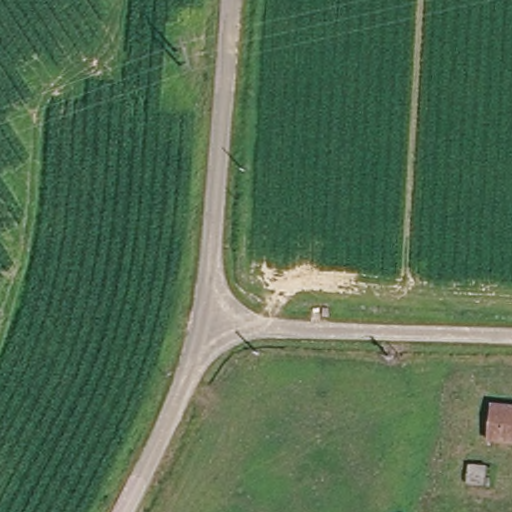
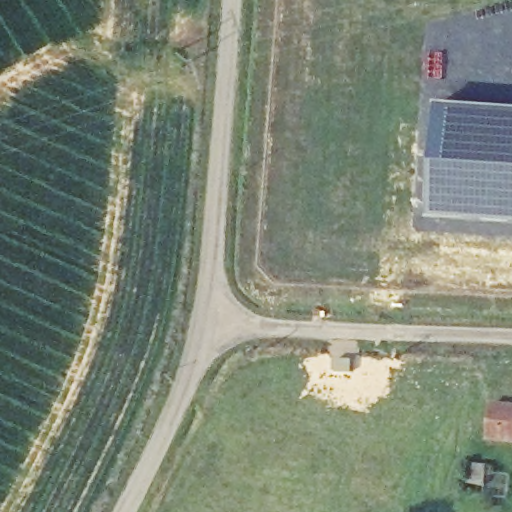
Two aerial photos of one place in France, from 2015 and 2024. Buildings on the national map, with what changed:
new [(434,216),(442,99),(512,104),(512,221),(434,216)]
unchanged [(485,444),(490,406),(512,408),(512,447),(485,444)]
unchanged [(482,489),(463,486),(466,465),(485,468),(482,489)]

